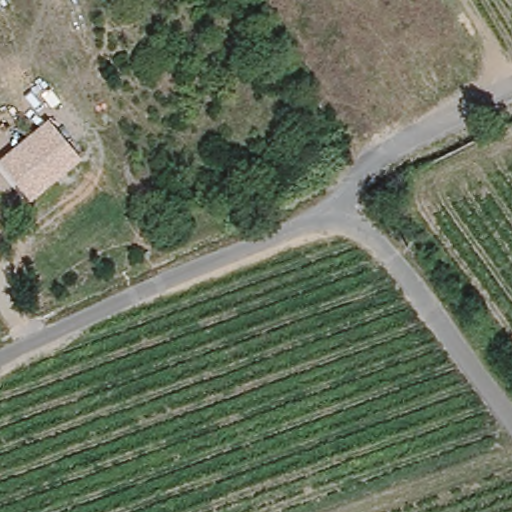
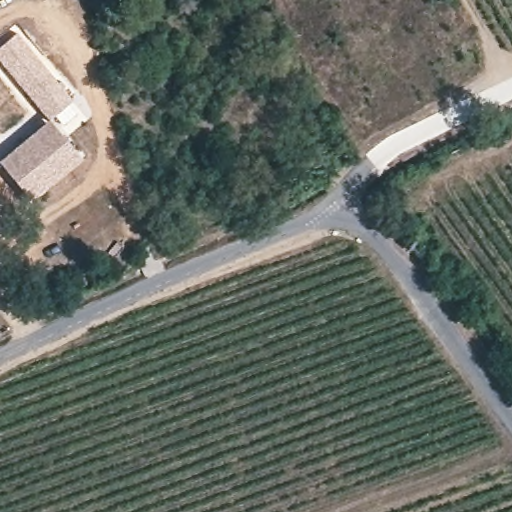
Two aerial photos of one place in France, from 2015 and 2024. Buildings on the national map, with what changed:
new [(72,100),(50,119),(48,120),(0,62),(0,47),(17,32),(72,100)]
unchanged [(0,162),(0,159),(50,119),(82,157),(31,200),(0,162)]

